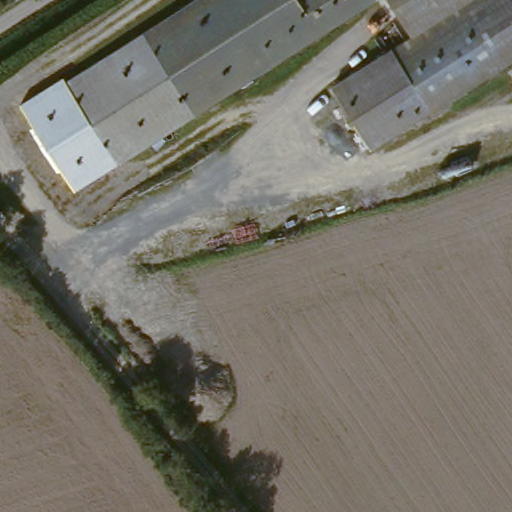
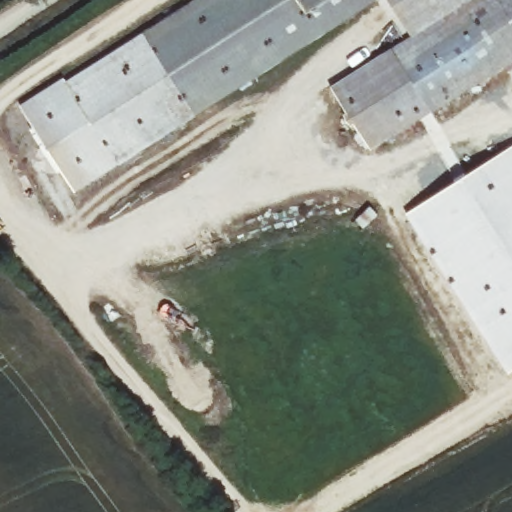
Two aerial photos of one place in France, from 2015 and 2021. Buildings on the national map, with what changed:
unchanged [(374,3),(75,194),(25,109),(202,0),(372,0),(374,3)]
unchanged [(364,157),(327,99),(408,44),(382,0),(512,0),(512,61),(364,157)]
new [(512,155),(512,386),(409,221),(512,155)]

